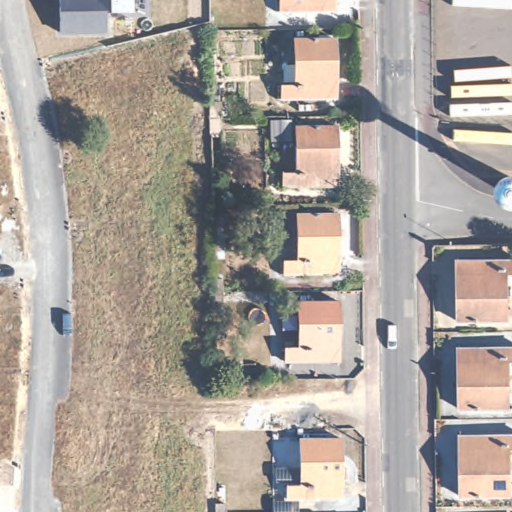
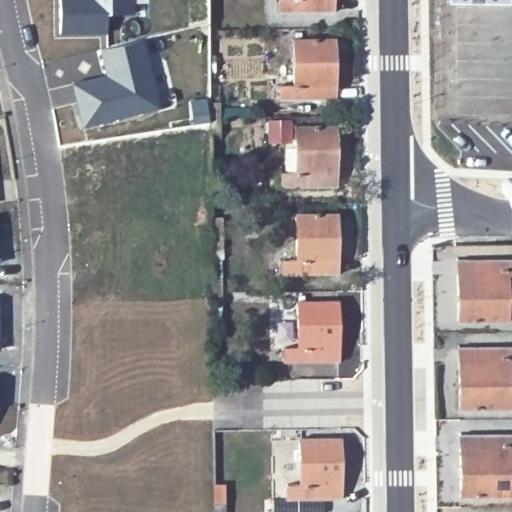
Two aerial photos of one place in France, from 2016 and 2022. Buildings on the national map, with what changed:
unchanged [(56,34),(57,0),(131,0),(131,12),(108,12),(106,33),(56,34)]
unchanged [(334,18),(279,18),(280,3),(293,3),(292,0),(333,0),(334,18)]
new [(106,74),(99,50),(143,39),(161,108),(83,127),(71,82),(106,74)]
unchanged [(329,45),(330,105),(277,105),(277,91),(289,91),(289,45),(329,45)]
unchanged [(210,134),(209,119),(209,103),(220,103),(221,119),(221,134),(210,134)]
unchanged [(267,121),(292,121),(291,133),(291,143),(266,142),(267,121)]
unchanged [(331,193),(278,194),(278,179),(291,179),(291,133),(330,132),(331,193)]
unchanged [(332,220),(333,280),(280,280),(279,266),(292,266),(292,221),(332,220)]
unchanged [(512,264),(512,279),(502,279),(502,325),(452,326),(451,265),(512,264)]
unchanged [(212,305),(212,292),(211,279),(222,280),(223,292),(223,305),(212,305)]
unchanged [(333,307),(334,367),(280,368),(280,353),(293,353),(293,307),(333,307)]
unchanged [(512,351),(512,366),(503,366),(504,412),(453,413),(452,352),(512,351)]
unchanged [(512,440),(512,455),(505,455),(505,501),(454,501),(454,440),(512,440)]
unchanged [(340,445),(340,504),(287,505),(287,490),(301,490),(300,445),(340,445)]
unchanged [(225,503),(225,512),(214,512),(214,503),(225,503)]

